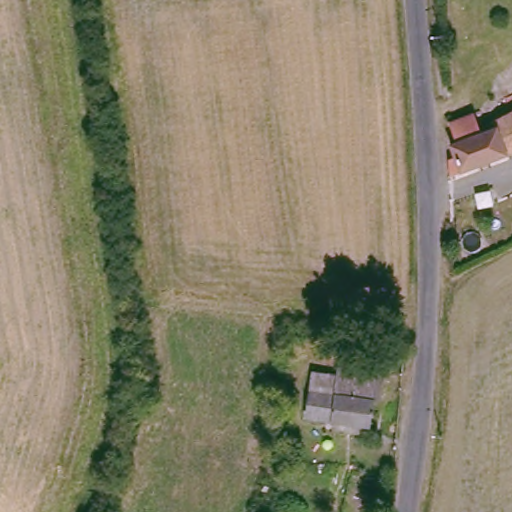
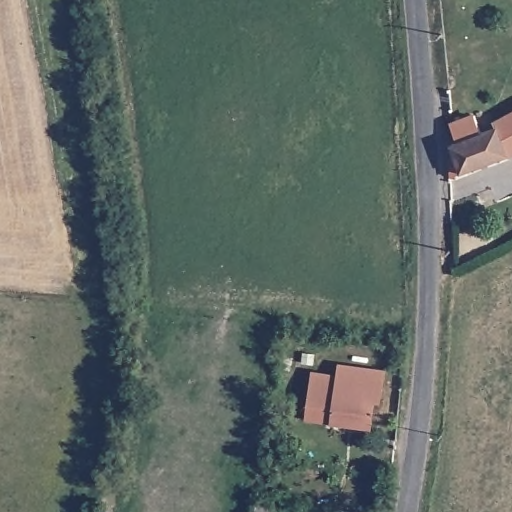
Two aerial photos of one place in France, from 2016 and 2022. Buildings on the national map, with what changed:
unchanged [(487,117),(512,105),(512,153),(505,157),(490,121),(487,117)]
unchanged [(505,157),(452,180),(452,164),(457,162),(448,140),(456,136),(448,119),(470,109),(478,126),(490,121),(505,157)]
unchanged [(330,423),(335,378),(337,367),(380,373),(377,403),(372,403),(368,426),(330,423)]
unchanged [(330,423),(303,417),(309,373),(335,378),(330,423)]

